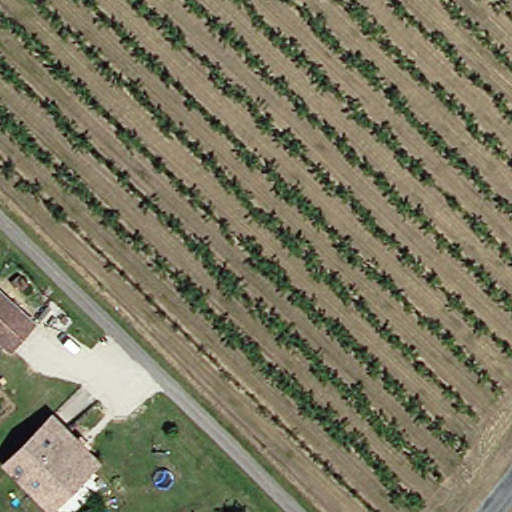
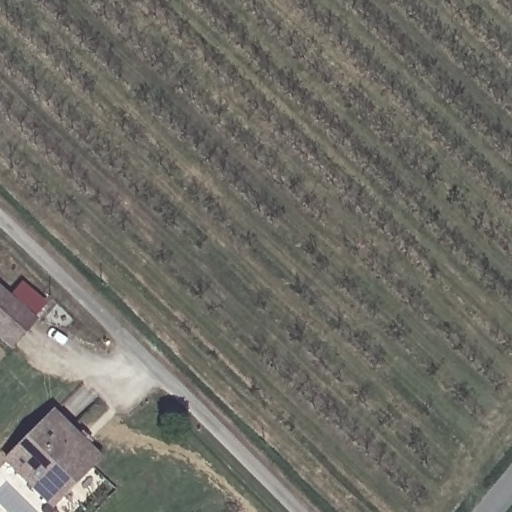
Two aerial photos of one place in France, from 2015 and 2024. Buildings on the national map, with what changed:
unchanged [(0,288),(34,318),(9,345),(0,337),(0,288)]
unchanged [(39,495),(5,461),(51,413),(96,457),(75,479),(50,505),(39,495)]

